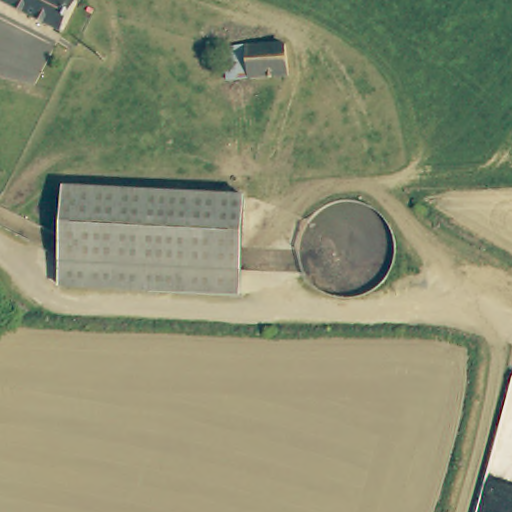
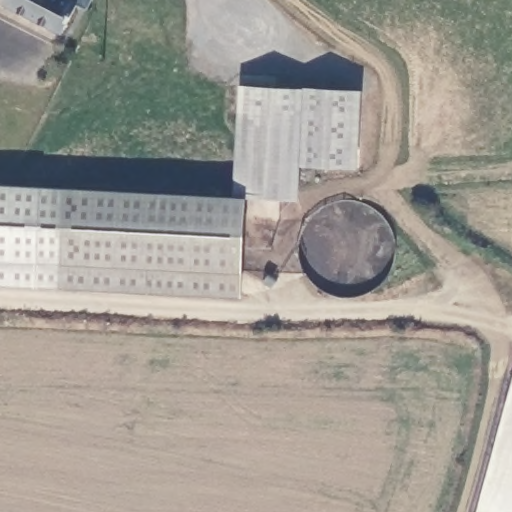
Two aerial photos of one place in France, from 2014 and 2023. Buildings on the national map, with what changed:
unchanged [(63,30),(11,0),(77,0),(63,30)]
unchanged [(88,4),(80,0),(90,0),(88,4)]
demolished [(286,39),(287,73),(248,75),(247,43),(286,39)]
new [(240,84),(361,90),(357,168),(301,165),(299,202),(245,198),(232,198),(240,84)]
new [(61,286),(0,284),(0,189),(62,192),(61,286)]
unchanged [(62,192),(245,198),(244,297),(61,292),(62,192)]

